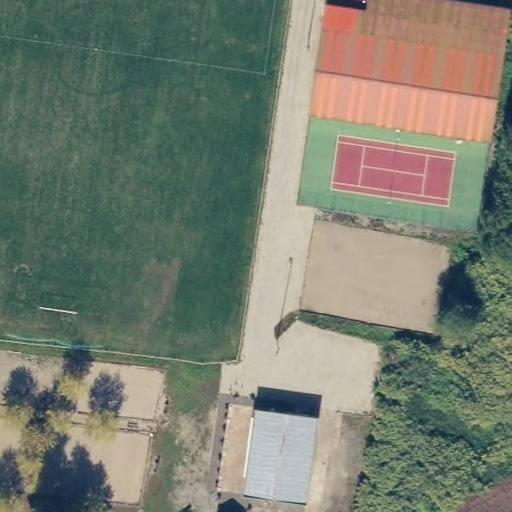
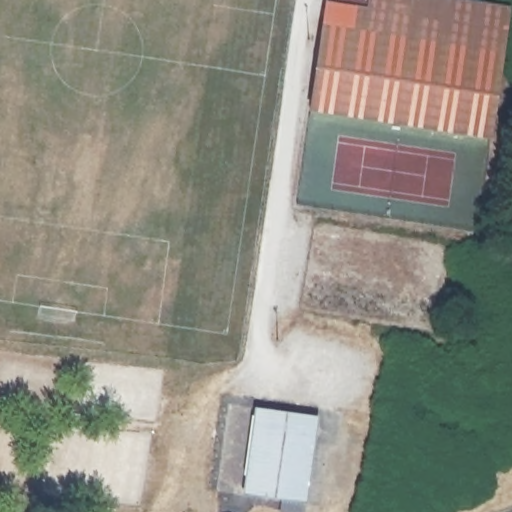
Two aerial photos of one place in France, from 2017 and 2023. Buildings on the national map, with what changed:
unchanged [(325,0),(332,0),(364,5),(365,0),(487,0),(507,3),(488,137),(309,109),(325,0)]
unchanged [(253,405),(300,411),(288,497),(241,490),(253,405)]

